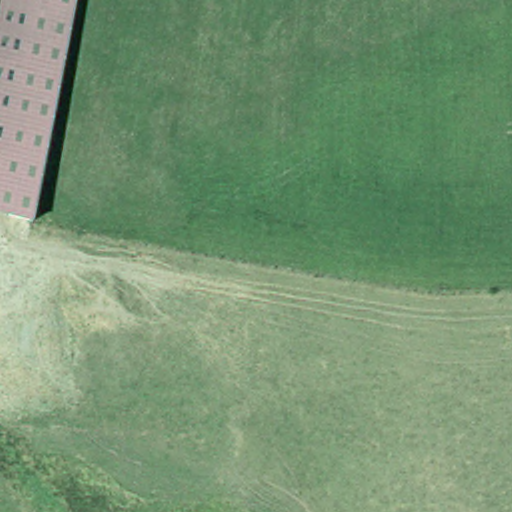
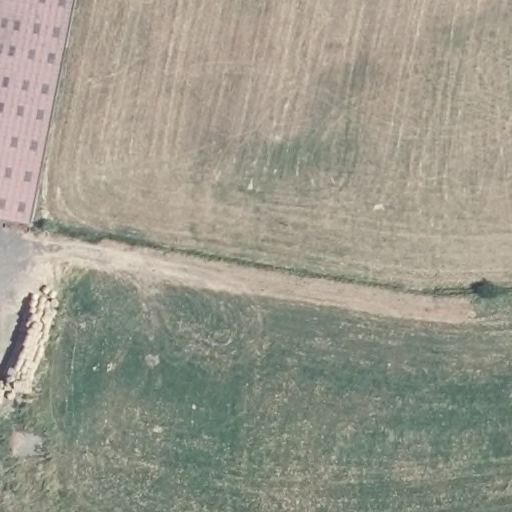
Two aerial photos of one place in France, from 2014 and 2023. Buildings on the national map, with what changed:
unchanged [(32,218),(0,213),(0,0),(75,0),(32,218)]

